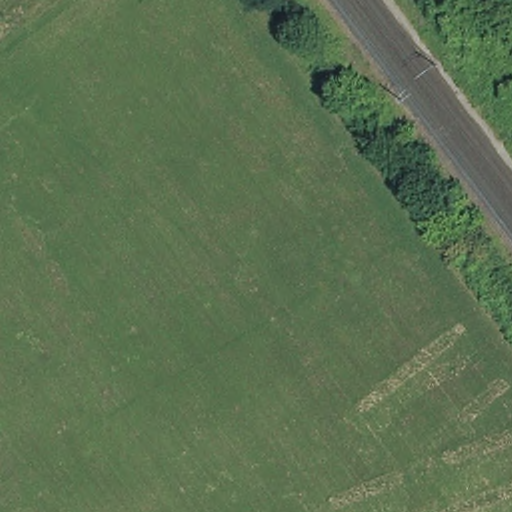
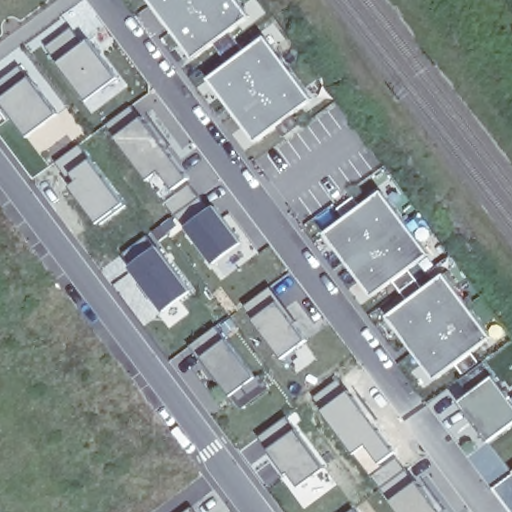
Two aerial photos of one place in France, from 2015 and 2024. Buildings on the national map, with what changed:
new [(241,17),(185,61),(143,0),(228,0),(241,17)]
new [(304,100),(248,140),(203,82),(258,39),(304,100)]
new [(109,78),(80,102),(53,65),(83,42),(109,78)]
new [(50,115),(19,137),(0,112),(0,98),(23,81),(50,115)]
new [(181,180),(166,192),(151,172),(139,181),(109,142),(136,120),(181,180)]
new [(80,145),(93,162),(124,205),(100,223),(70,186),(54,165),(80,145)]
new [(423,256),(366,300),(320,237),(376,194),(423,256)]
new [(233,243),(206,266),(178,230),(208,210),(233,243)]
new [(185,296),(158,318),(123,270),(151,250),(185,296)]
new [(481,340),(429,381),(382,320),(441,277),(481,340)]
new [(271,287),(298,322),(294,323),(308,342),(281,360),(243,307),(271,287)]
new [(220,381),(218,383),(207,369),(191,348),(194,346),(218,328),(228,341),(228,340),(257,380),(233,398),(220,381)]
new [(339,378),(348,390),(395,454),(379,465),(366,446),(354,455),(323,412),(312,397),(339,378)]
new [(512,421),(484,443),(455,405),(489,379),(512,414),(512,421)]
new [(296,430),(324,470),(298,488),(266,450),(256,437),(284,416),(296,430)]
new [(441,512),(395,512),(388,503),(417,481),(441,512)]
new [(193,512),(186,512),(191,508),(193,512)]
new [(356,512),(353,512),(355,510),(356,512)]

